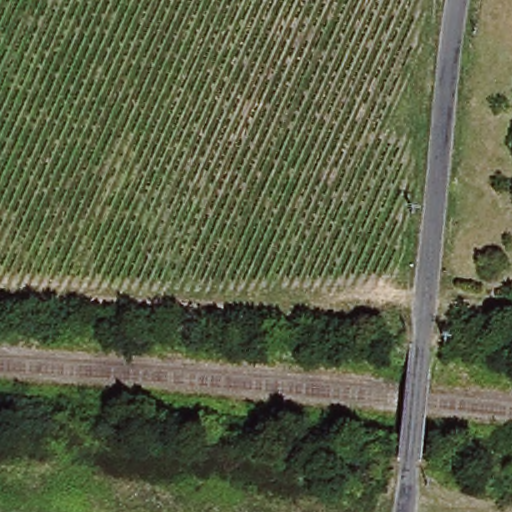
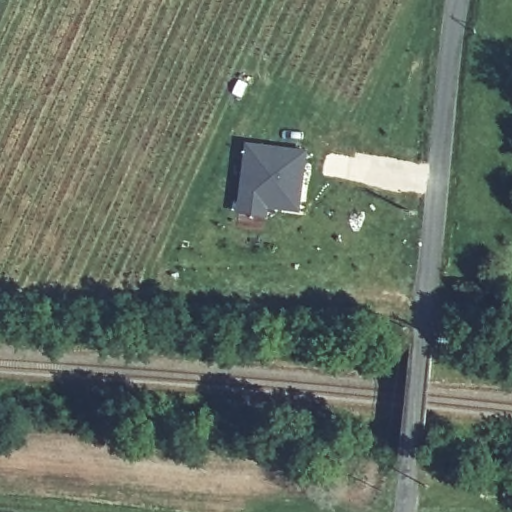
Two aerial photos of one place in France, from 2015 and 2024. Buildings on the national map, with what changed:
new [(245,145),(303,153),(295,211),(263,207),(262,216),(235,212),(240,180),(245,145)]
unchanged [(363,300),(387,302),(385,321),(361,317),(363,300)]

